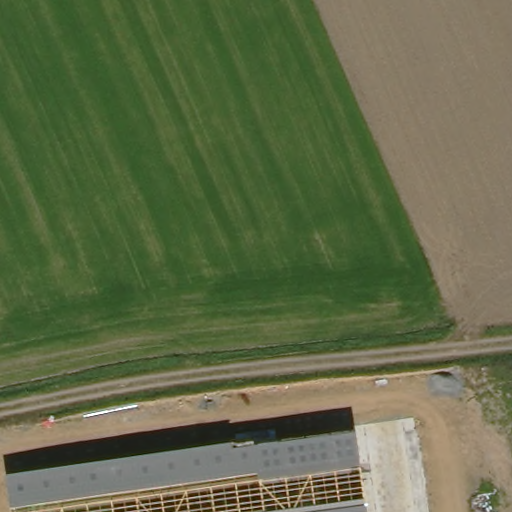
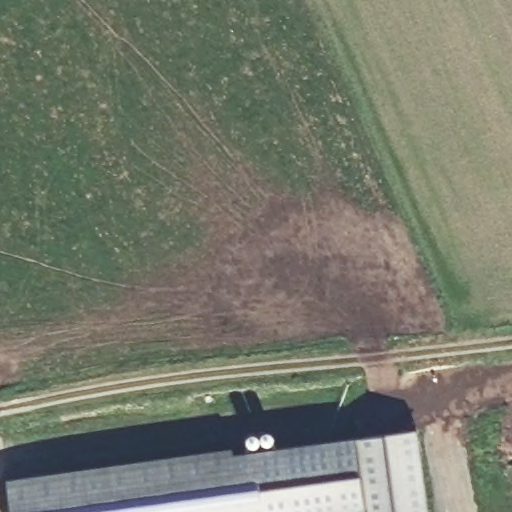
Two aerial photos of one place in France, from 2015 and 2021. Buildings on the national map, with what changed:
new [(418,430),(430,512),(367,512),(357,438),(418,430)]
unchanged [(367,512),(12,512),(8,481),(235,448),(235,455),(357,438),(367,512)]

